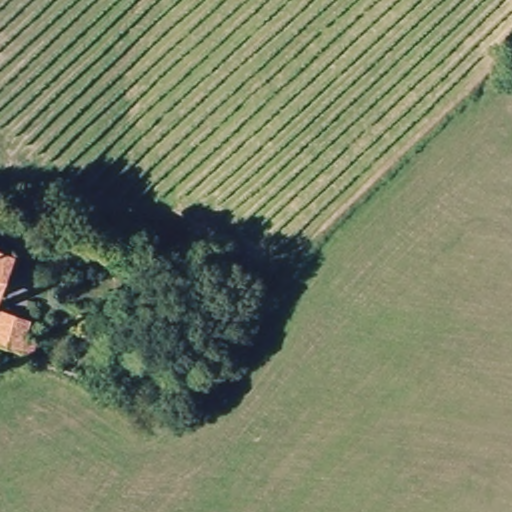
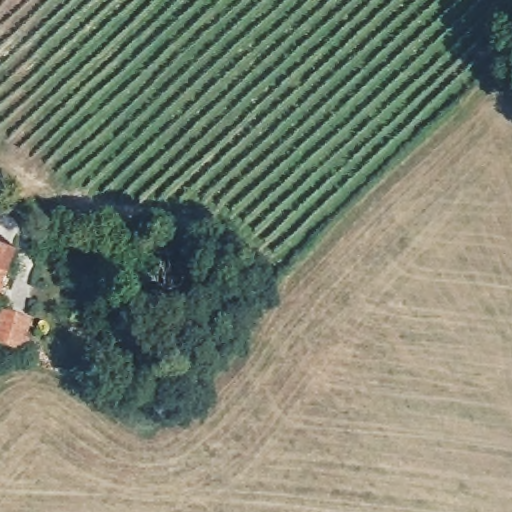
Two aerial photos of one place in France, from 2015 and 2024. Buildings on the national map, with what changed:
unchanged [(3,309),(0,308),(0,254),(25,265),(3,309)]
unchanged [(14,351),(1,344),(10,325),(35,337),(27,355),(14,351)]

